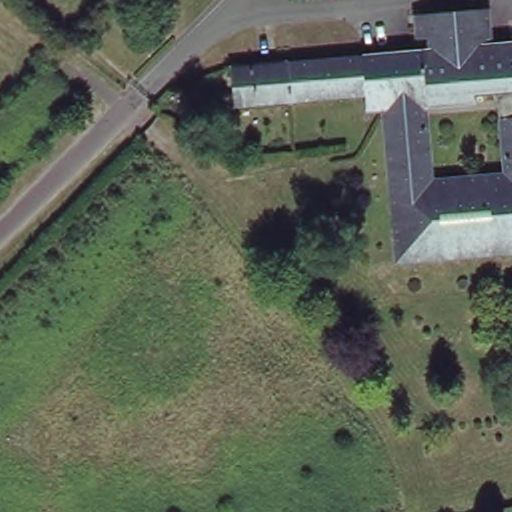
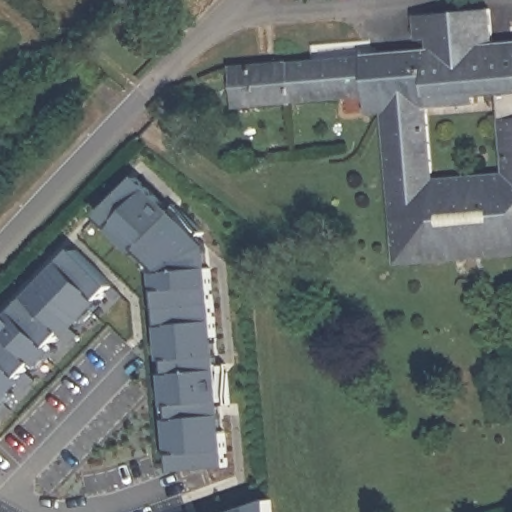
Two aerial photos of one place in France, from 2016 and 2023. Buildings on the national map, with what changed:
unchanged [(509,250),(399,257),(383,102),(371,104),(370,90),(239,100),(236,63),(426,46),(423,2),(450,0),(493,0),(497,39),(512,38),(512,225),(507,225),(509,250)]
new [(171,211),(176,206),(204,230),(200,237),(209,245),(219,366),(227,365),(229,403),(222,403),(227,465),(175,468),(175,451),(177,451),(167,325),(162,325),(161,288),(164,288),(162,267),(117,225),(112,227),(101,214),(136,177),(171,211)]
unchanged [(512,225),(512,250),(509,250),(507,225),(512,225)]
new [(114,285),(101,297),(98,295),(0,396),(0,308),(9,298),(17,307),(70,255),(77,250),(114,285)]
new [(272,512),(236,512),(271,499),(272,512)]

